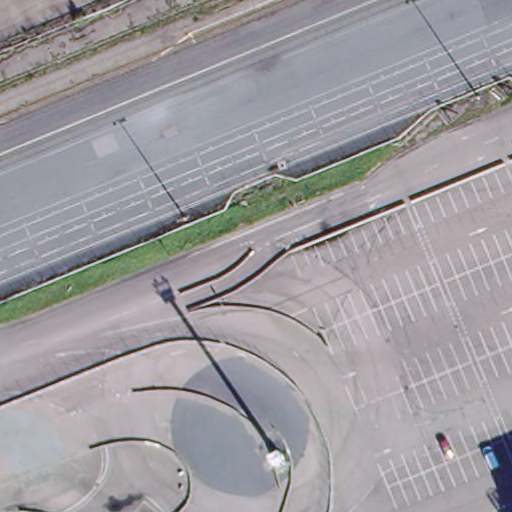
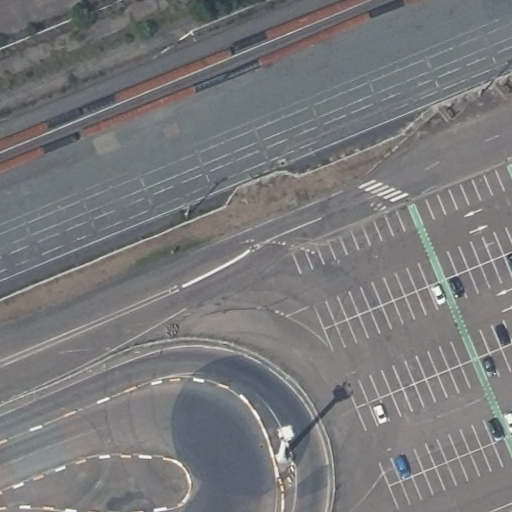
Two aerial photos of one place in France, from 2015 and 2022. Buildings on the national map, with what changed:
[]

